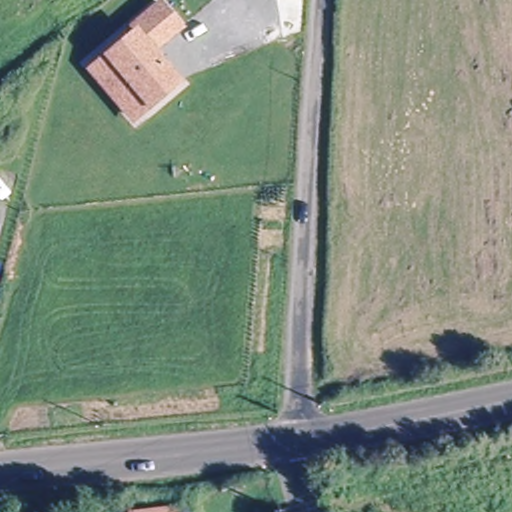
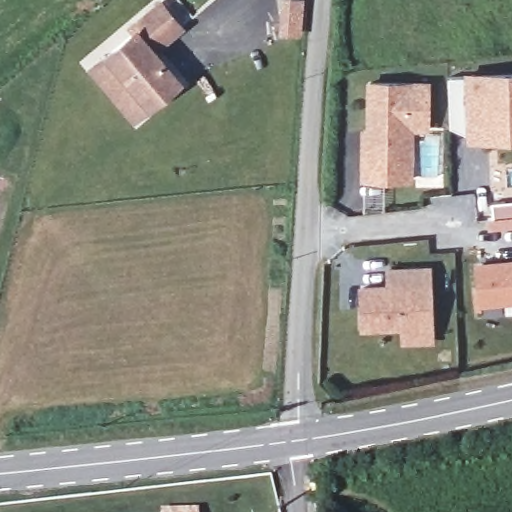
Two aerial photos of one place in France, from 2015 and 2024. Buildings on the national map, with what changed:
unchanged [(138,119),(125,103),(96,70),(140,33),(136,28),(164,4),(185,29),(157,52),(179,77),(183,82),(138,119)]
new [(467,143),(466,135),(450,127),(448,77),(464,76),(463,72),(512,71),(512,142),(467,143)]
new [(414,131),(414,183),(360,182),(360,128),(365,127),(365,79),(430,81),(430,131),(414,131)]
new [(474,261),(512,258),(512,304),(478,307),(474,261)]
new [(357,284),(386,283),(386,266),(431,263),(435,344),(400,345),(400,329),(359,331),(357,284)]
demolished [(122,512),(121,510),(177,503),(178,512),(122,512)]
new [(198,508),(198,512),(161,512),(161,508),(198,508)]

